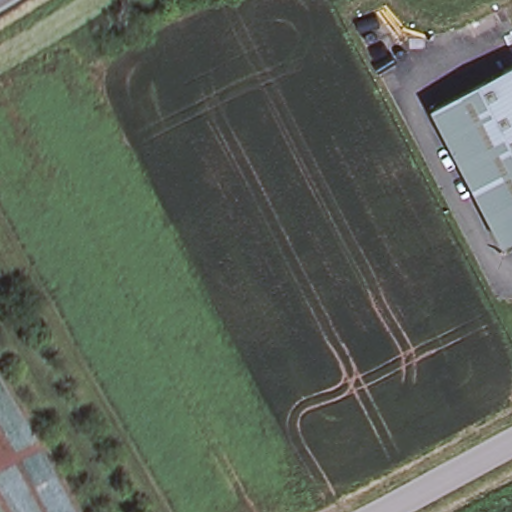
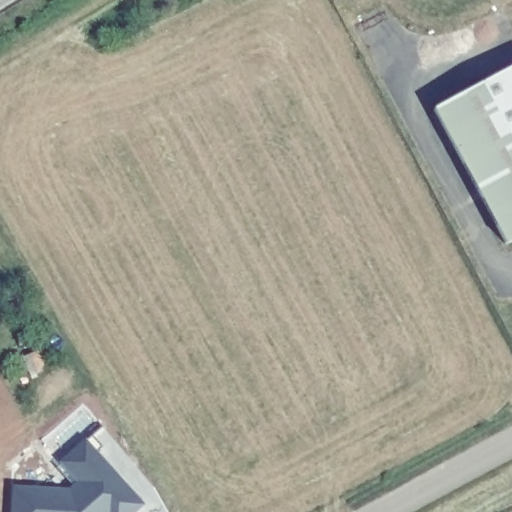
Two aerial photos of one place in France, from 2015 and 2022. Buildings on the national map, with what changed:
unchanged [(435,107),(512,66),(512,240),(509,242),(435,107)]
new [(70,488),(77,482),(61,460),(86,439),(145,504),(137,512),(12,512),(13,485),(70,488)]

